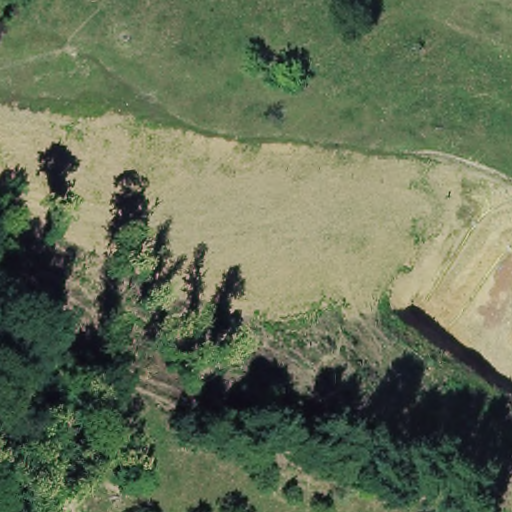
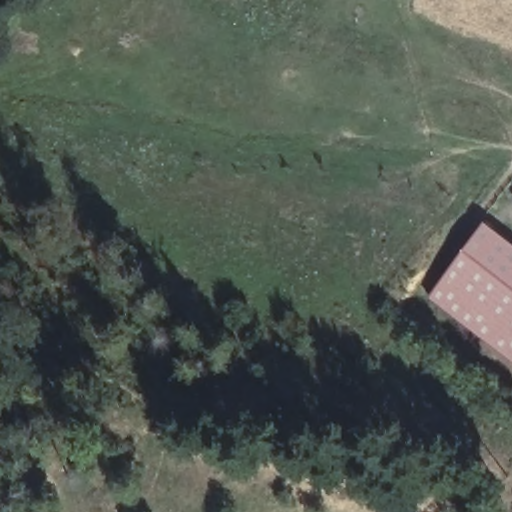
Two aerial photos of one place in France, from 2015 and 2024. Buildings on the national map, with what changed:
new [(427,298),(485,221),(512,241),(512,360),(427,298)]

